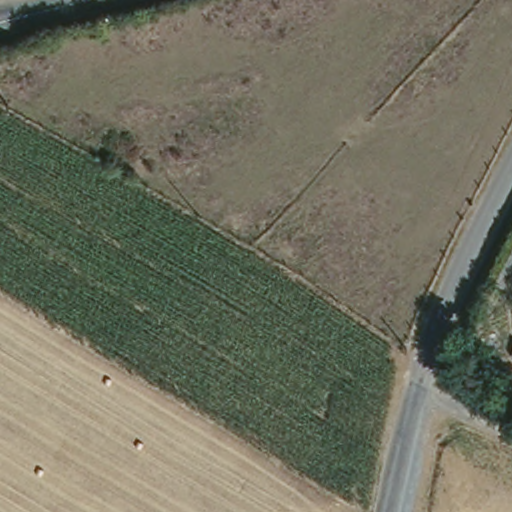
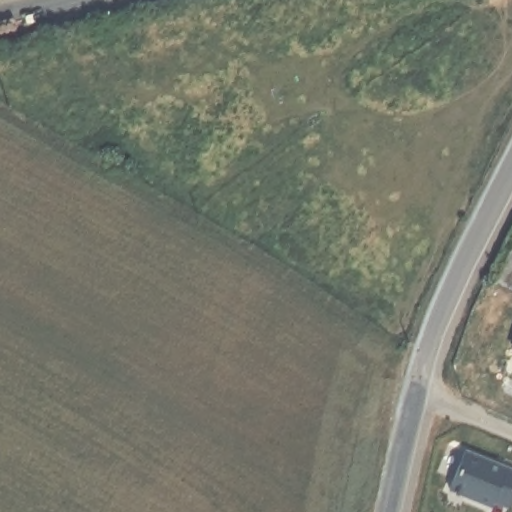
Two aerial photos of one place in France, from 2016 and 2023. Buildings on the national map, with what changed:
new [(462,446),(512,463),(512,487),(507,501),(491,495),(489,501),(446,484),(462,446)]

